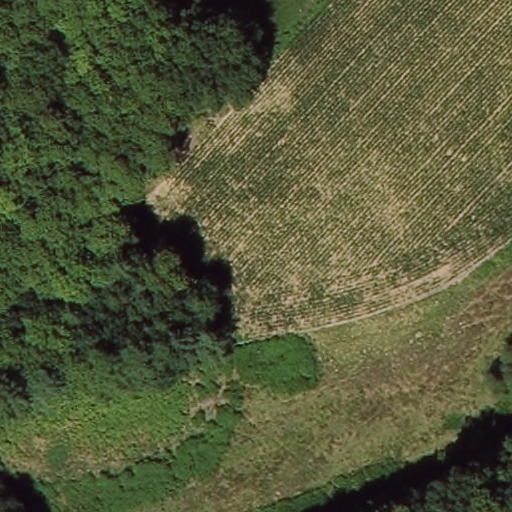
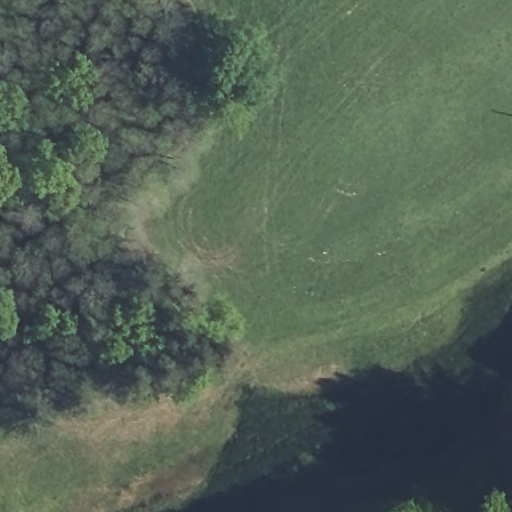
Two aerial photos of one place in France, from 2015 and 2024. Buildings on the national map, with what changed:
[]

